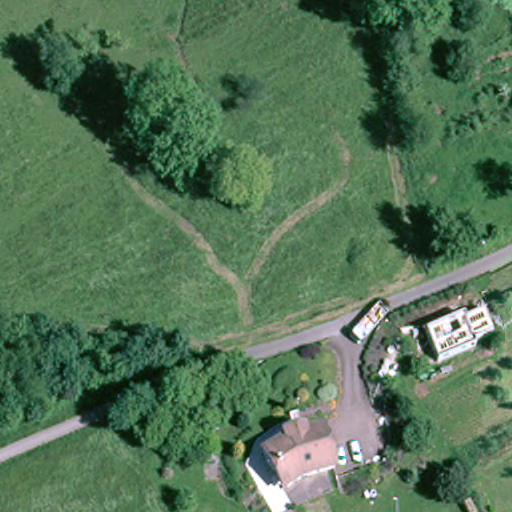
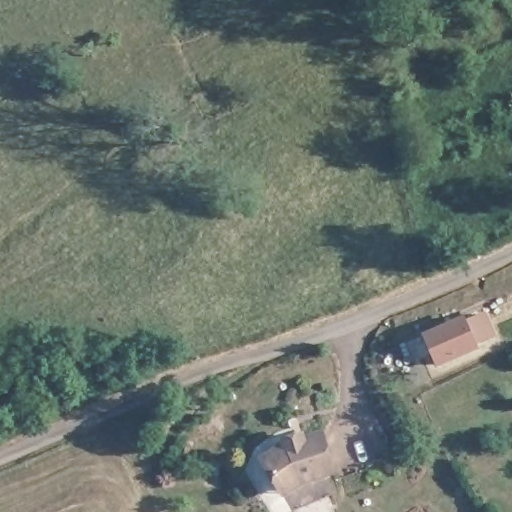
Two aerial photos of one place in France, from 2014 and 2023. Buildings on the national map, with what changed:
new [(497,334),(477,343),(478,347),(436,365),(422,331),(464,314),(466,319),(486,310),(497,334)]
unchanged [(267,476),(262,478),(255,453),(283,446),(280,438),(297,434),(300,442),(327,436),(337,479),(272,495),(267,476)]

